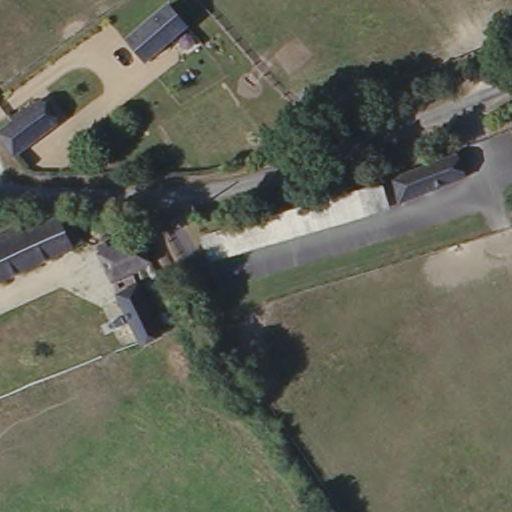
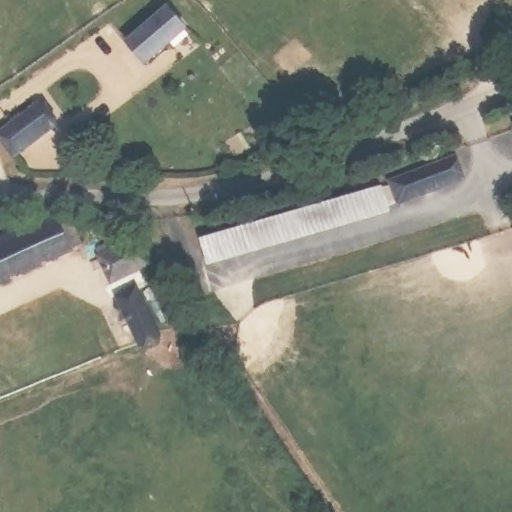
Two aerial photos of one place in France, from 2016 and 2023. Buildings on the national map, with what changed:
unchanged [(192,27),(148,57),(131,32),(175,2),(192,27)]
unchanged [(62,122),(18,150),(3,129),(48,101),(62,122)]
unchanged [(458,145),(470,172),(400,200),(389,174),(458,145)]
unchanged [(386,187),(391,210),(210,257),(206,238),(386,187)]
unchanged [(26,229),(53,217),(71,219),(81,244),(0,281),(0,232),(23,222),(26,229)]
unchanged [(144,235),(157,257),(115,278),(101,255),(144,235)]
unchanged [(141,341),(118,296),(141,283),(164,330),(141,341)]

